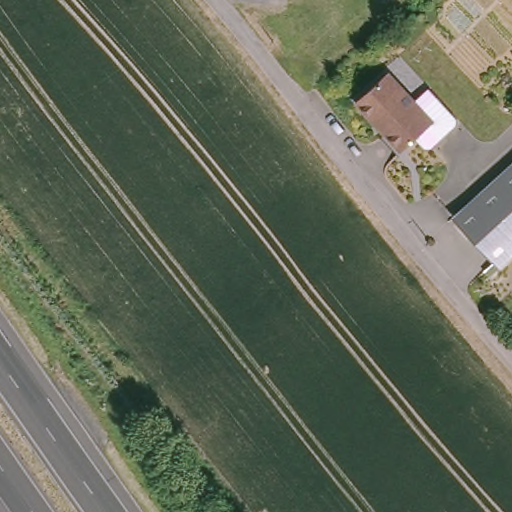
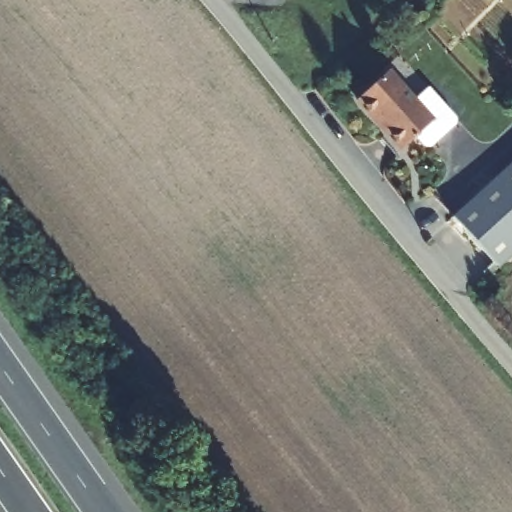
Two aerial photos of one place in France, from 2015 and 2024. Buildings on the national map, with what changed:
unchanged [(397,88),(412,74),(439,105),(439,111),(413,134),(407,134),(398,124),(384,136),(369,120),(373,115),(346,83),(371,60),(397,88)]
unchanged [(512,248),(494,263),(452,206),(512,157),(512,248)]

